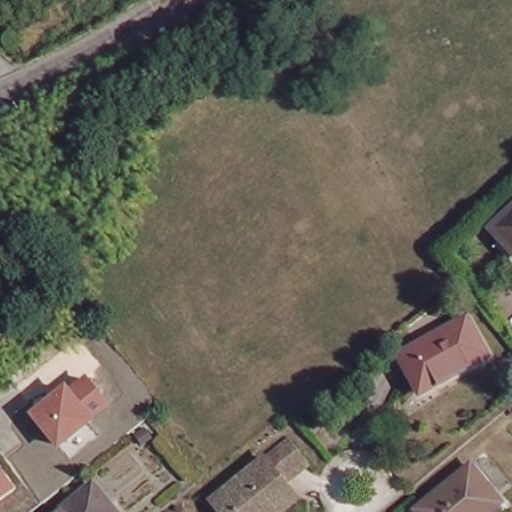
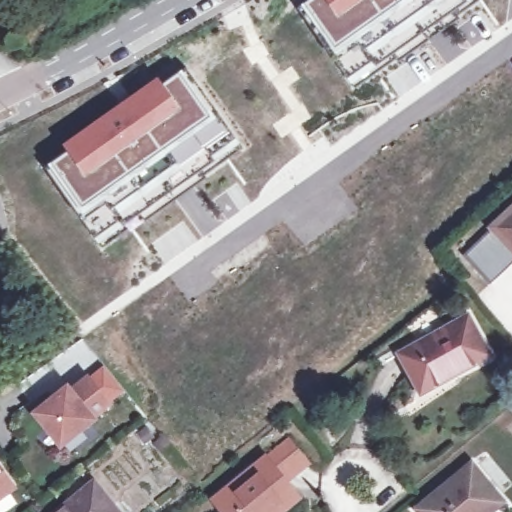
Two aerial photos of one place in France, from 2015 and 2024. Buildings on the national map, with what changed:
new [(469,1),(377,65),(371,60),(349,77),(297,4),(302,0),(468,0),(469,1)]
new [(211,154),(215,161),(125,224),(121,218),(96,235),(80,209),(71,195),(67,197),(40,160),(80,132),(76,128),(99,112),(105,120),(149,91),(145,85),(185,57),(192,64),(195,62),(225,105),(217,110),(237,137),(211,154)]
unchanged [(487,232),(512,208),(512,259),(487,232)]
unchanged [(417,387),(398,353),(466,316),(488,356),(451,376),(420,392),(417,387)]
unchanged [(30,414),(67,385),(71,390),(87,376),(112,407),(60,450),(30,414)]
unchanged [(224,512),(210,495),(262,452),(283,436),(300,456),(278,473),(292,491),(267,512),(224,512)]
unchanged [(502,502),(489,512),(420,512),(417,509),(471,465),(502,502)]
unchanged [(0,468),(15,489),(0,500),(0,468)]
unchanged [(111,507),(115,512),(59,512),(92,485),(111,507)]

